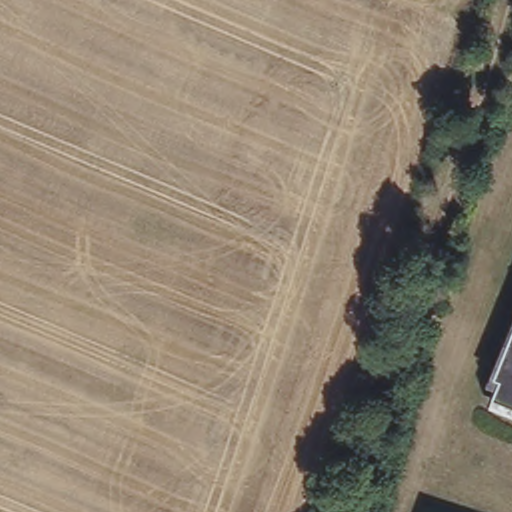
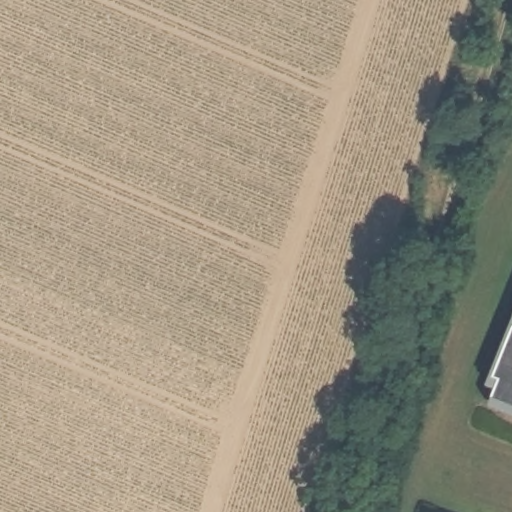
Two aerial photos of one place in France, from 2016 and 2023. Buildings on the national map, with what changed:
unchanged [(492,378),(486,376),(507,325),(512,313),(512,407),(485,396),(492,378)]

